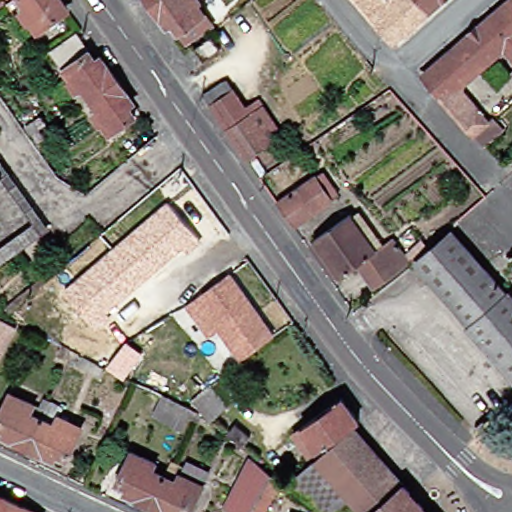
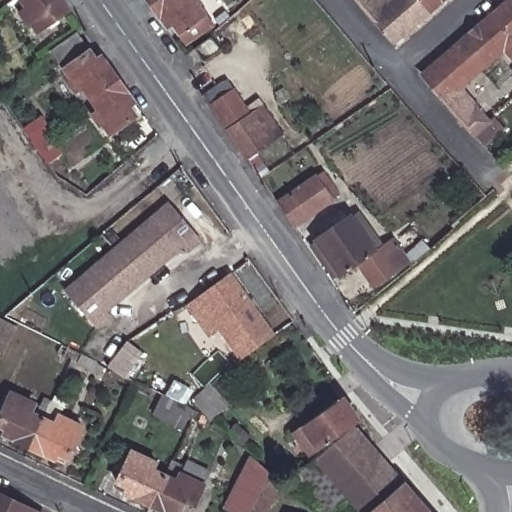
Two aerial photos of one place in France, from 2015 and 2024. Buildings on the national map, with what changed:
unchanged [(65,4),(59,8),(62,14),(34,34),(29,26),(27,28),(15,11),(22,7),(18,1),(20,0),(62,0),(65,4)]
unchanged [(17,0),(20,0),(18,1),(17,0)]
unchanged [(138,0),(158,0),(145,10),(138,0)]
unchanged [(194,17),(172,33),(165,24),(157,29),(155,24),(145,10),(158,0),(182,0),(194,17)]
unchanged [(393,47),(352,0),(367,0),(379,15),(395,0),(410,0),(426,19),(393,47)]
unchanged [(426,19),(410,0),(447,0),(426,19)]
unchanged [(512,46),(489,19),(510,0),(512,0),(512,46)]
unchanged [(512,46),(512,62),(502,51),(478,73),(456,47),(489,19),(512,46)]
unchanged [(77,35),(99,65),(105,60),(120,81),(91,102),(82,90),(75,95),(69,85),(70,84),(50,56),(77,35)]
unchanged [(186,59),(184,56),(200,44),(209,53),(191,66),(185,60),(186,59)]
unchanged [(458,91),(472,107),(484,121),(490,116),(500,127),(480,145),(422,76),(456,47),(478,73),(458,91)]
unchanged [(200,95),(221,80),(240,107),(247,102),(250,105),(254,102),(277,136),(243,160),(200,95)]
unchanged [(135,104),(130,108),(136,116),(108,136),(100,125),(99,126),(90,117),(97,111),(91,102),(120,81),(135,104)]
unchanged [(275,206),(320,174),(330,186),(325,191),(330,199),(292,226),(275,206)]
demolished [(2,182),(0,183),(0,180),(2,182)]
unchanged [(169,202),(202,241),(189,254),(184,249),(108,311),(111,316),(98,329),(64,290),(169,202)]
unchanged [(368,293),(352,271),(335,283),(309,245),(345,220),(372,257),(390,244),(407,266),(368,293)]
demolished [(34,225),(43,237),(0,269),(0,251),(34,225)]
unchanged [(445,231),(452,225),(469,244),(462,250),(446,232),(445,231)]
demolished [(465,330),(411,267),(446,236),(500,298),(502,296),(512,308),(512,395),(460,335),(465,330)]
unchanged [(222,328),(212,336),(187,305),(197,297),(229,272),(258,309),(276,331),(257,347),(245,356),(227,334),(222,328)]
unchanged [(7,338),(0,351),(0,335),(7,338)]
unchanged [(240,400),(210,423),(192,405),(225,381),(240,400)]
unchanged [(39,420),(24,450),(0,440),(0,436),(1,433),(0,433),(0,410),(7,395),(30,406),(26,414),(39,420)]
unchanged [(180,406),(186,410),(177,427),(150,415),(159,395),(180,406)]
unchanged [(319,450),(302,426),(342,399),(359,422),(319,450)]
unchanged [(39,420),(52,426),(56,420),(79,430),(63,463),(53,458),(50,462),(24,450),(39,420)]
unchanged [(320,511),(290,483),(353,428),(424,512),(356,512),(340,494),(320,511)]
unchanged [(124,491),(115,487),(130,455),(151,466),(149,472),(161,478),(146,508),(121,496),(124,491)]
unchanged [(167,481),(174,485),(177,479),(200,490),(189,512),(155,512),(146,508),(161,478),(169,462),(175,465),(167,481)]
unchanged [(230,512),(222,507),(244,463),(246,464),(267,475),(279,481),(264,512),(230,512)]
unchanged [(10,505),(6,512),(0,512),(0,500),(10,505)]
unchanged [(25,512),(6,512),(10,505),(25,512)]

